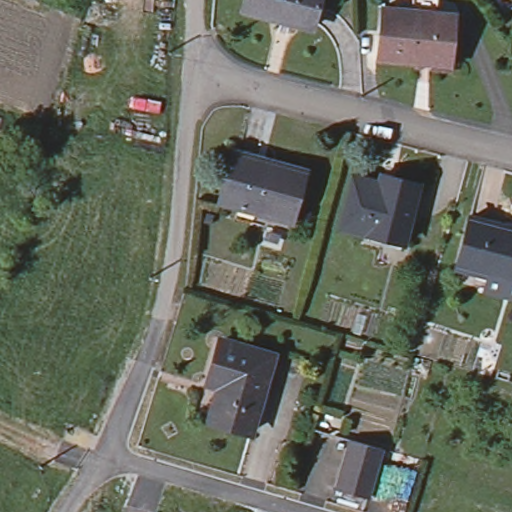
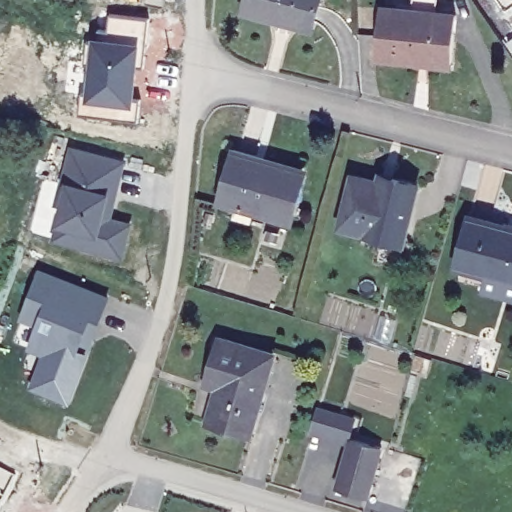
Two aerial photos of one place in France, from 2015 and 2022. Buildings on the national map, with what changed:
unchanged [(282,19),(282,21),(244,11),(247,0),(320,0),(313,27),(282,19)]
unchanged [(376,59),(381,8),(412,11),(413,0),(437,0),(437,13),(457,15),(452,66),(450,66),(416,63),(376,59)]
unchanged [(505,14),(495,0),(512,0),(512,9),(505,14)]
new [(113,217),(132,222),(123,260),(50,240),(64,186),(58,183),(70,146),(126,160),(113,217)]
unchanged [(231,213),(234,201),(217,197),(228,156),(231,147),(259,155),(299,166),(285,215),(250,206),(247,217),(231,213)]
unchanged [(341,227),(354,176),(380,183),(382,175),(394,178),(418,184),(404,243),(402,243),(384,238),(341,227)]
unchanged [(488,271),(457,263),(470,211),(511,222),(512,222),(512,292),(484,286),(488,271)]
new [(110,295),(90,349),(80,346),(78,350),(89,354),(69,403),(29,389),(41,356),(27,350),(35,328),(17,321),(38,268),(110,295)]
unchanged [(212,383),(225,339),(277,355),(255,432),(213,419),(223,386),(212,383)]
unchanged [(380,447),(367,498),(335,489),(349,439),(380,447)]

